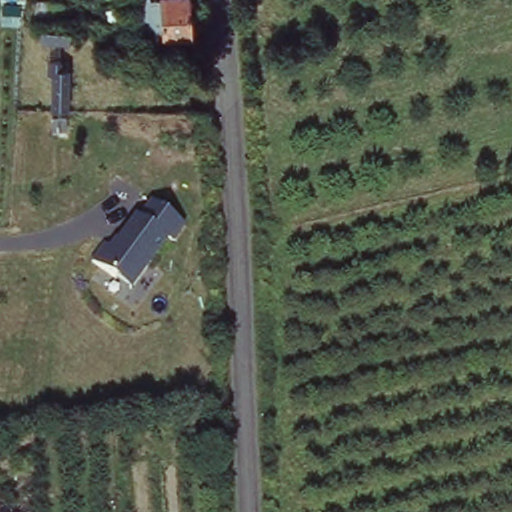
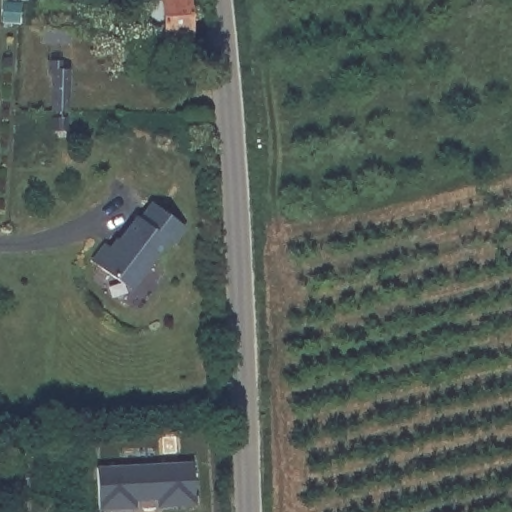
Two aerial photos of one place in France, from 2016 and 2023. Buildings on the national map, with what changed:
unchanged [(34,0),(63,0),(56,25),(34,22),(34,0)]
unchanged [(164,32),(162,0),(187,0),(189,30),(164,32)]
unchanged [(71,33),(70,47),(40,42),(42,29),(71,33)]
unchanged [(53,75),(49,75),(48,61),(62,61),(62,70),(70,70),(69,112),(51,111),(53,75)]
unchanged [(187,229),(134,289),(97,258),(152,189),(187,229)]
new [(196,505),(158,507),(158,501),(138,501),(139,508),(100,509),(97,465),(191,461),(196,505)]

